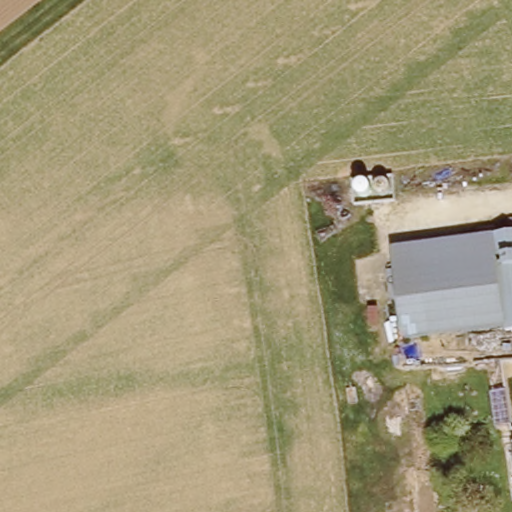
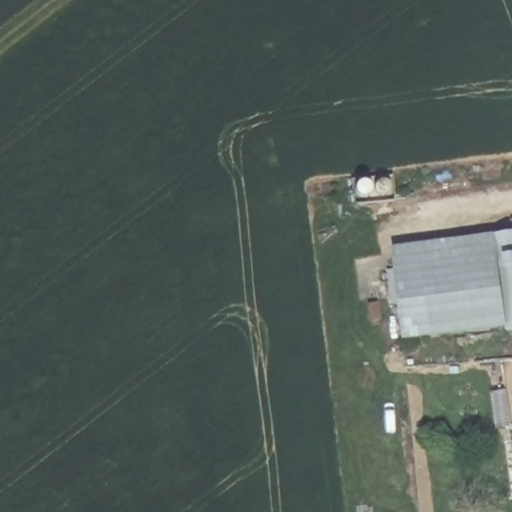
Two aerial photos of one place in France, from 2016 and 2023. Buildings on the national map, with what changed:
unchanged [(405,340),(393,249),(512,232),(512,332),(405,340)]
unchanged [(512,443),(512,456),(511,443),(512,443)]

